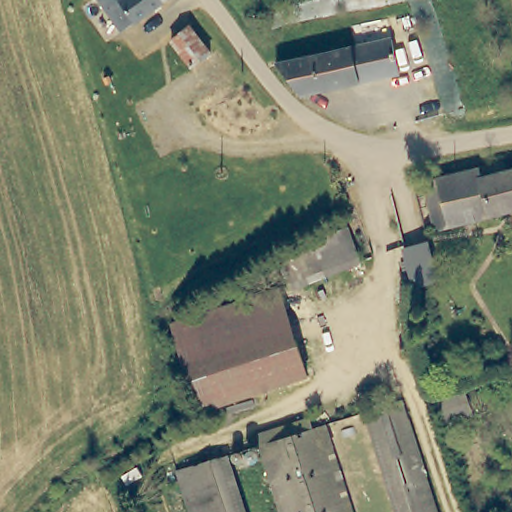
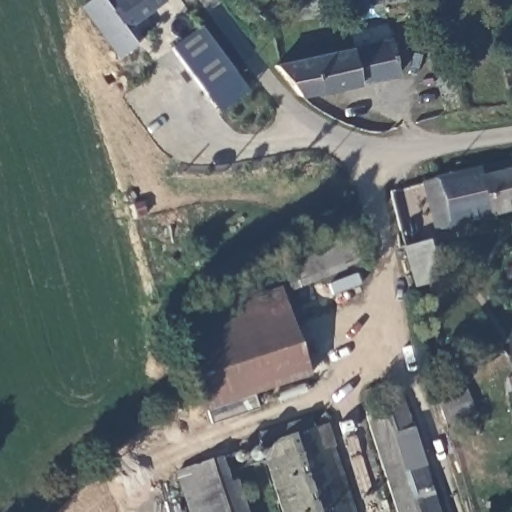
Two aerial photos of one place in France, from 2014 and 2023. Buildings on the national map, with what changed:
unchanged [(164,0),(129,26),(108,0),(164,0)]
demolished [(190,69),(170,44),(190,29),(209,54),(190,69)]
new [(205,97),(170,50),(202,29),(235,74),(205,97)]
unchanged [(388,35),(397,71),(358,81),(348,47),(388,35)]
unchanged [(348,47),(358,81),(300,96),(280,64),(348,47)]
unchanged [(512,209),(441,229),(430,185),(485,167),(511,161),(512,165),(512,209)]
unchanged [(348,227),(360,262),(288,287),(276,251),(348,227)]
unchanged [(307,377),(201,413),(170,324),(279,290),(307,377)]
unchanged [(403,398),(439,512),(398,512),(365,411),(403,398)]
unchanged [(262,443),(259,434),(310,418),(312,428),(320,425),(347,512),(284,512),(262,443)]
unchanged [(176,471),(229,455),(247,512),(190,512),(176,471)]

